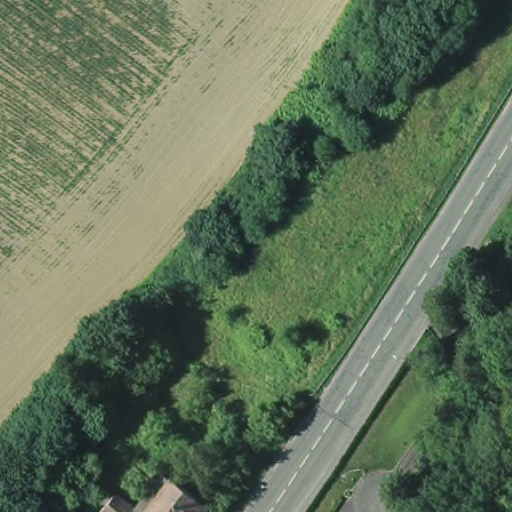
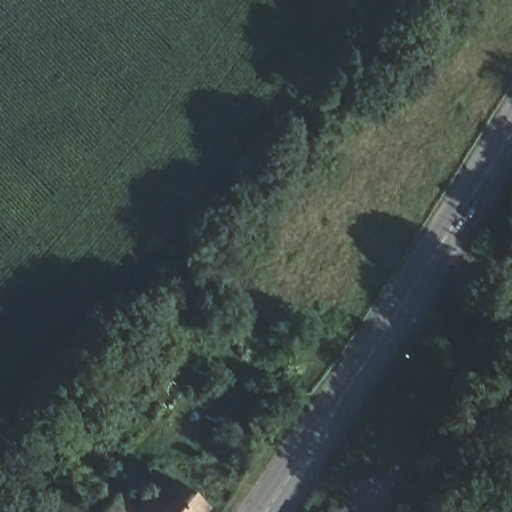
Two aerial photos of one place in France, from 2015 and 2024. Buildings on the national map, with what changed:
unchanged [(170,484),(202,512),(147,512),(170,484)]
unchanged [(114,499),(129,512),(104,512),(114,499)]

